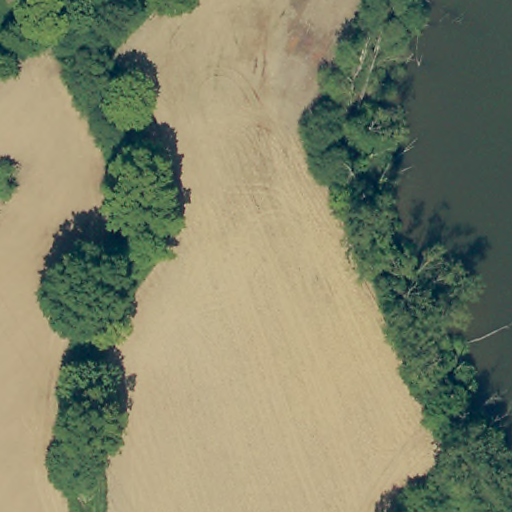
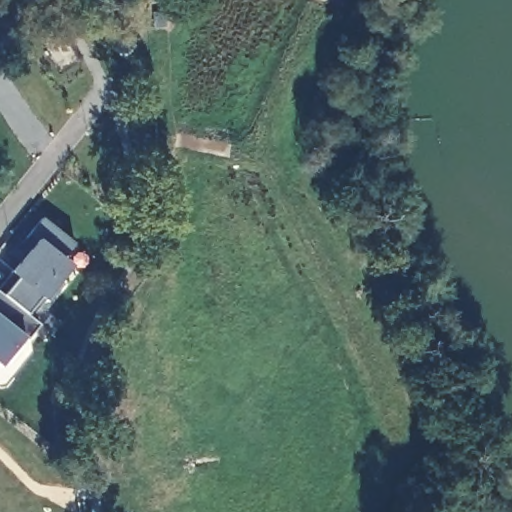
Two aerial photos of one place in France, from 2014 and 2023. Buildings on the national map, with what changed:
new [(73,265),(46,301),(41,296),(29,313),(27,315),(39,325),(25,338),(1,366),(0,365),(0,289),(11,275),(21,261),(11,255),(43,219),(75,244),(63,257),(73,265)]

